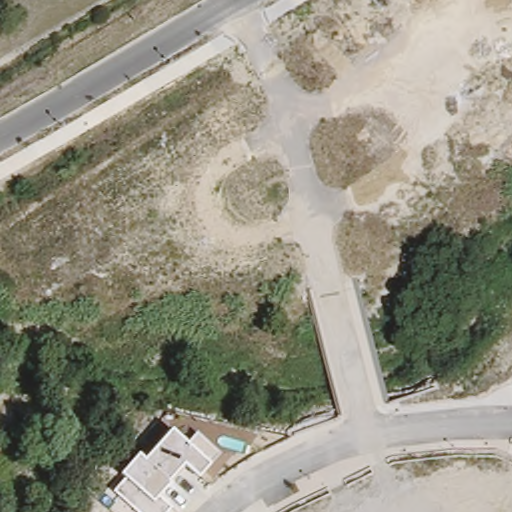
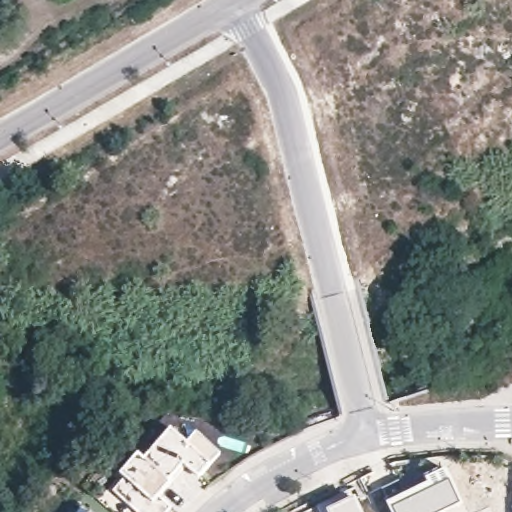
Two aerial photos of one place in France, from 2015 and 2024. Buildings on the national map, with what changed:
unchanged [(210,465),(198,478),(183,465),(167,483),(170,485),(159,497),(172,508),(169,512),(135,512),(112,493),(125,478),(120,474),(138,455),(143,461),(172,431),(187,444),(197,433),(220,455),(210,465)]
new [(427,485),(425,480),(447,470),(464,505),(450,512),(390,512),(387,505),(427,485)]
new [(320,509),(355,492),(359,501),(365,512),(322,512),(320,509)]

